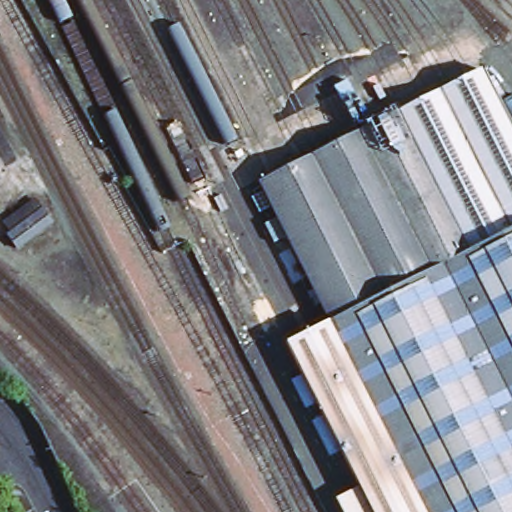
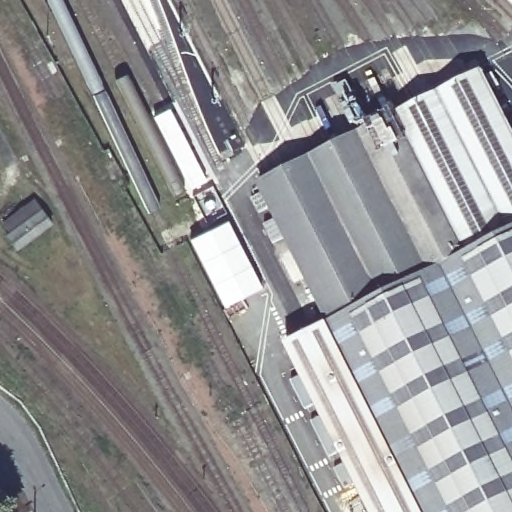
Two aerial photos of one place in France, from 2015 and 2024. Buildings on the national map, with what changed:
unchanged [(332,505),(352,494),(280,349),(324,326),(255,188),(494,63),(512,98),(512,512),(336,512),(332,505)]
new [(212,183),(225,207),(206,217),(193,193),(212,183)]
unchanged [(11,233),(4,219),(32,199),(40,212),(52,226),(16,257),(2,239),(11,233)]
new [(228,218),(263,288),(224,309),(188,239),(228,218)]

